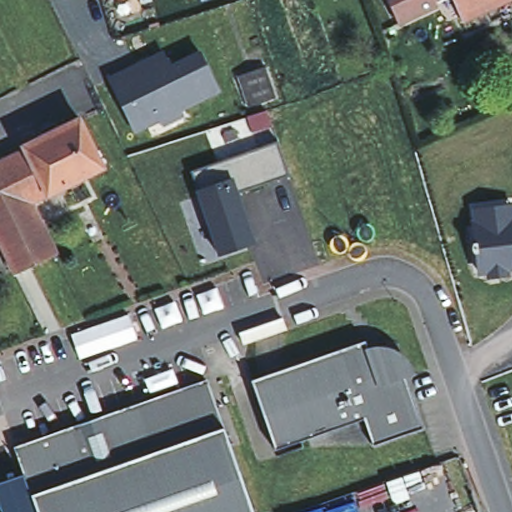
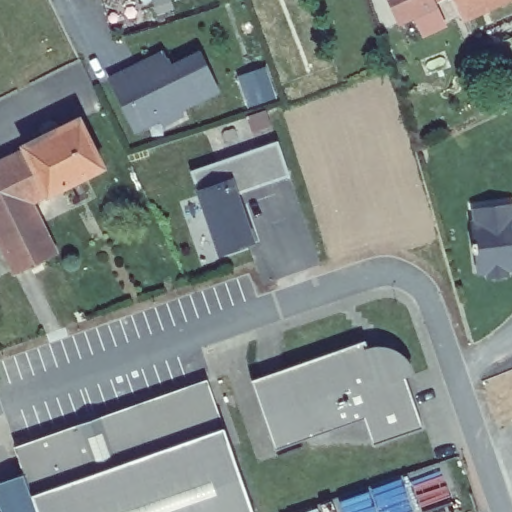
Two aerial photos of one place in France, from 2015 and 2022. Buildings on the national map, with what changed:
unchanged [(401,18),(392,0),(437,0),(437,1),(401,18)]
unchanged [(453,0),(496,0),(460,16),(453,0)]
unchanged [(162,53),(171,66),(197,54),(217,93),(180,111),(180,117),(136,137),(110,80),(162,53)]
unchanged [(247,109),(242,90),(236,73),(265,64),(276,99),(247,109)]
unchanged [(27,140),(83,113),(107,161),(52,189),(28,142),(27,140)]
unchanged [(52,189),(35,197),(0,215),(0,156),(28,142),(52,189)]
unchanged [(277,144),(287,179),(239,191),(253,249),(216,260),(195,197),(201,194),(194,171),(277,144)]
unchanged [(60,249),(22,267),(0,225),(0,215),(35,197),(60,249)]
unchanged [(501,265),(502,271),(500,273),(485,276),(482,273),(482,268),(472,270),(470,252),(468,252),(467,250),(467,245),(467,244),(468,242),(467,225),(471,225),(469,209),(507,203),(508,217),(512,217),(512,264),(501,265)]
unchanged [(372,336),(377,335),(385,334),(392,335),(400,338),(407,342),(412,347),(417,358),(409,361),(428,416),(377,435),(368,407),(280,439),(255,369),(369,329),(372,336)]
unchanged [(83,433),(103,426),(109,414),(207,380),(253,512),(0,512),(0,486),(21,476),(15,449),(74,428),(83,433)]

